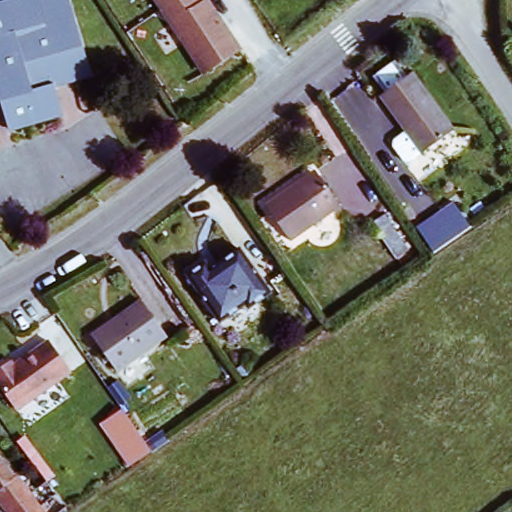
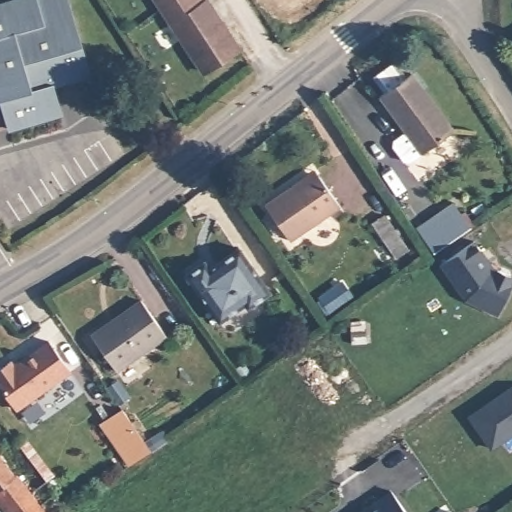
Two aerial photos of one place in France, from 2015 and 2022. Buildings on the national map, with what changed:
unchanged [(10,129),(0,96),(0,5),(17,0),(69,0),(91,75),(54,85),(62,114),(10,129)]
unchanged [(172,17),(173,16),(162,0),(212,0),(220,11),(219,13),(226,23),(228,22),(241,42),(207,65),(190,41),(190,42),(172,17)]
unchanged [(395,142),(395,136),(408,127),(381,91),(412,69),(454,125),(410,157),(405,156),(395,142)]
unchanged [(290,241),(266,207),(295,187),(317,171),(320,175),(341,206),(290,241)]
unchanged [(423,224),(455,203),(460,199),(476,224),(471,228),(440,249),(423,224)]
unchanged [(374,225),(386,216),(410,251),(397,259),(374,225)]
new [(485,254),(485,257),(491,267),(512,277),(512,291),(500,316),(468,300),(443,264),(476,241),(485,254)]
unchanged [(269,295),(227,325),(192,276),(230,248),(269,295)]
unchanged [(142,296),(166,331),(117,366),(92,331),(142,296)]
unchanged [(70,367),(18,405),(0,380),(0,365),(12,356),(15,360),(48,336),(70,367)]
new [(473,415),(512,388),(512,435),(495,447),(473,415)]
unchanged [(0,503),(0,460),(14,477),(17,475),(31,493),(48,481),(67,508),(62,512),(7,512),(0,503)]
new [(393,490),(409,512),(362,512),(393,490)]

